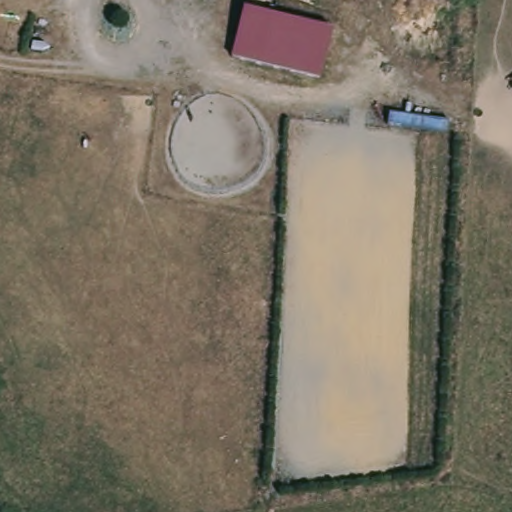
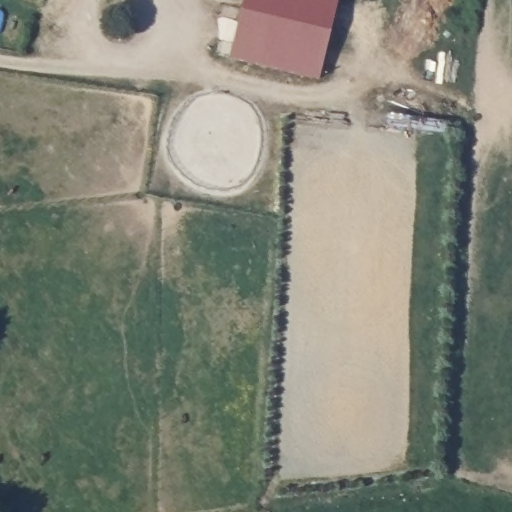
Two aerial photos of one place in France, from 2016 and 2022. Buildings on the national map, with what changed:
unchanged [(319,78),(232,59),(242,13),(331,33),(319,78)]

